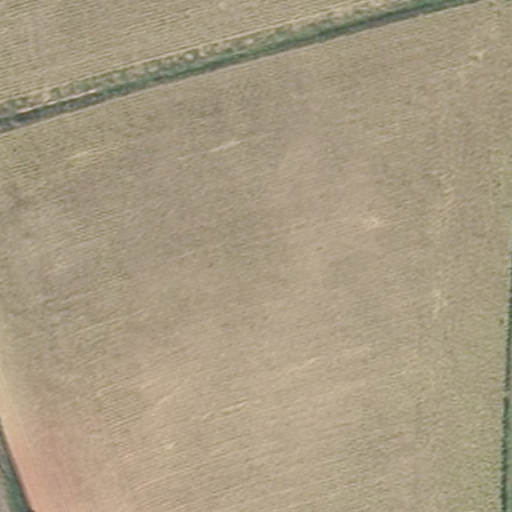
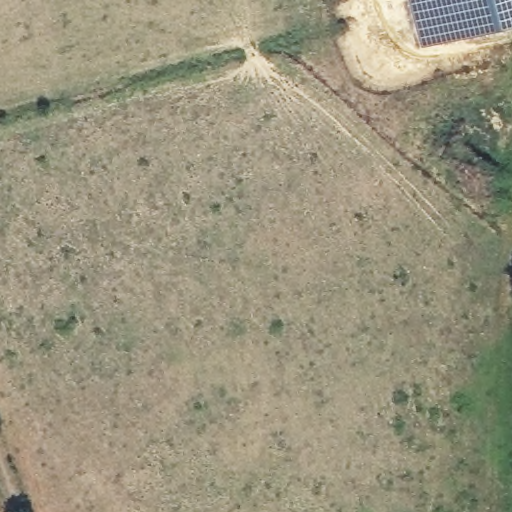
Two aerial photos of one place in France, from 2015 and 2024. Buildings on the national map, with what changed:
new [(410,0),(512,0),(512,22),(422,46),(410,0)]

